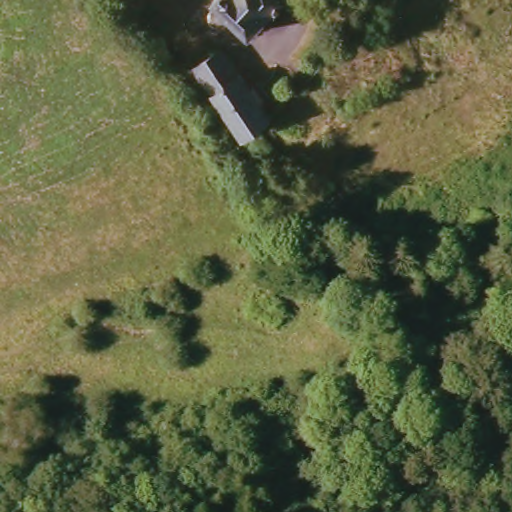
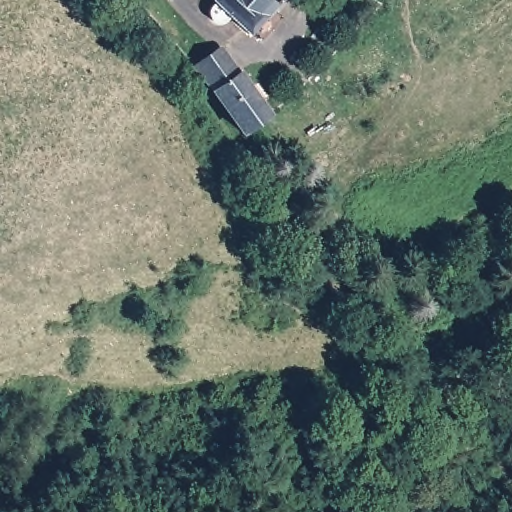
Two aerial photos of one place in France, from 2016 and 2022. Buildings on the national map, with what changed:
unchanged [(235,20),(223,24),(214,17),(215,13),(220,5),(216,3),(217,0),(282,0),(250,34),(235,20)]
unchanged [(210,79),(199,61),(222,46),(240,74),(242,73),(267,113),(240,130),(210,79)]

